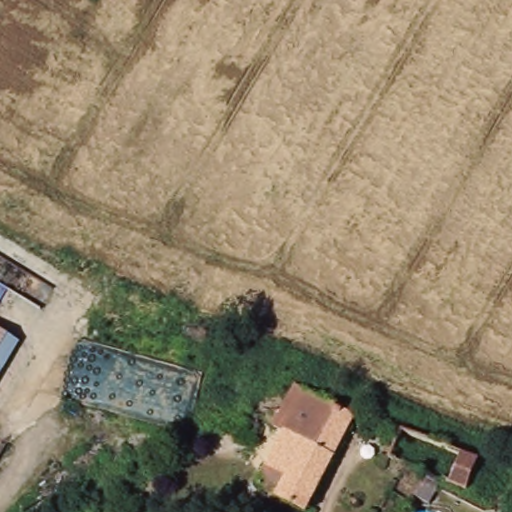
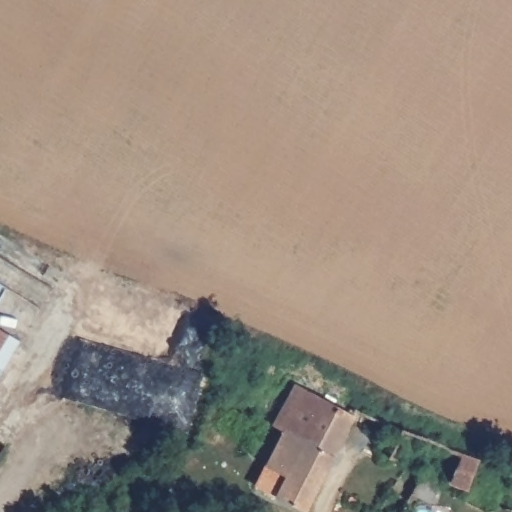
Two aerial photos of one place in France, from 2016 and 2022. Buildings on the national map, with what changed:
unchanged [(0,379),(0,328),(22,342),(0,379)]
unchanged [(275,426),(297,386),(352,414),(305,511),(257,486),(284,432),(275,426)]
unchanged [(392,455),(402,427),(484,460),(471,491),(445,480),(428,512),(399,512),(422,470),(392,455)]

